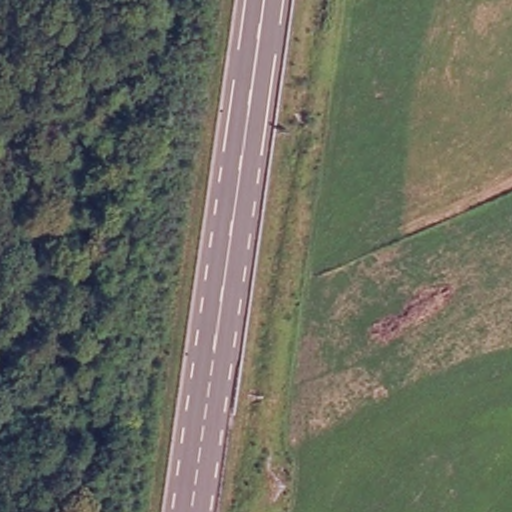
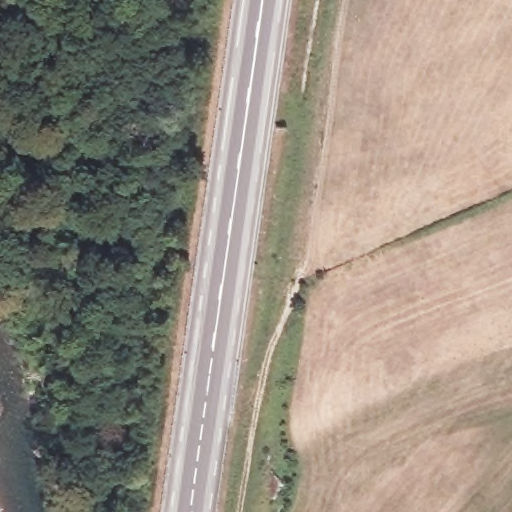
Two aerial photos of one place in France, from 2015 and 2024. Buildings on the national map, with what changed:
[]

